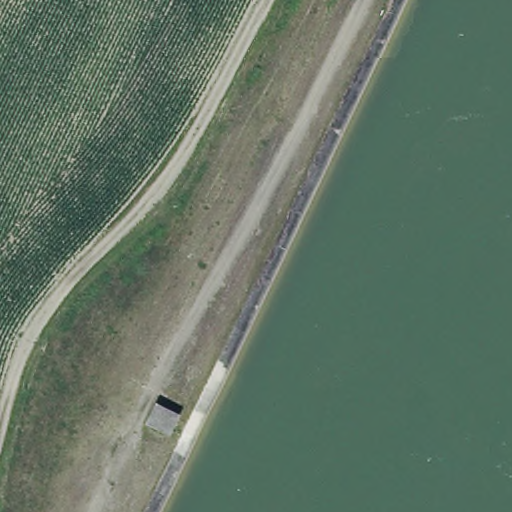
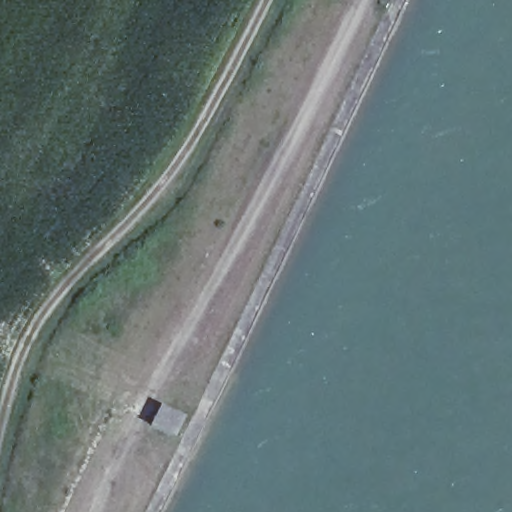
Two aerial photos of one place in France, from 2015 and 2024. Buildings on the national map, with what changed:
unchanged [(167,394),(195,405),(184,432),(157,422),(167,394)]

